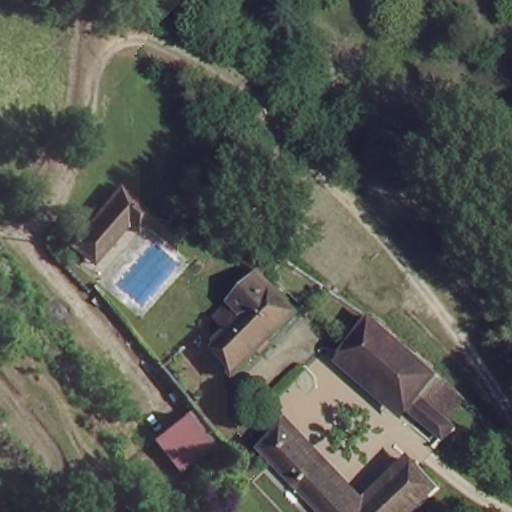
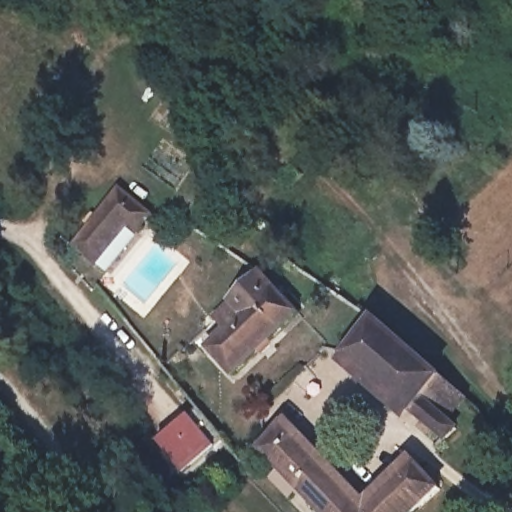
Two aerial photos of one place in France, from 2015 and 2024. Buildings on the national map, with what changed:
unchanged [(148,219),(135,237),(126,230),(96,271),(78,259),(120,200),(148,219)]
unchanged [(246,366),(221,339),(242,317),(236,310),(272,277),(305,309),(246,366)]
unchanged [(448,441),(419,413),(349,346),(374,312),(443,368),(450,374),(432,397),(464,426),(448,441)]
unchanged [(154,434),(185,411),(220,449),(189,476),(154,434)]
unchanged [(290,465),(266,436),(285,417),(312,448),(290,465)]
unchanged [(361,512),(328,512),(290,465),(312,448),(365,508),(361,512)]
unchanged [(415,462),(440,492),(417,512),(361,512),(365,508),(415,462)]

